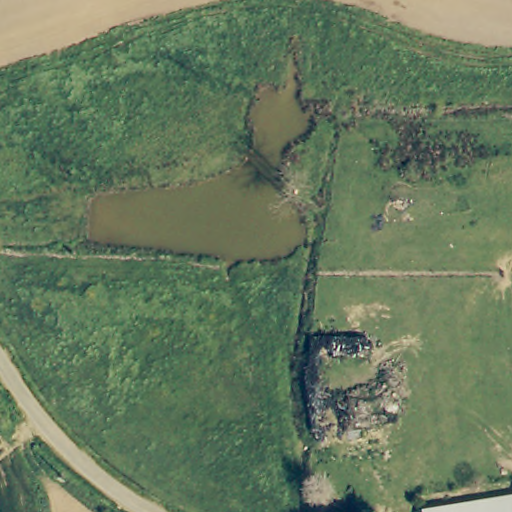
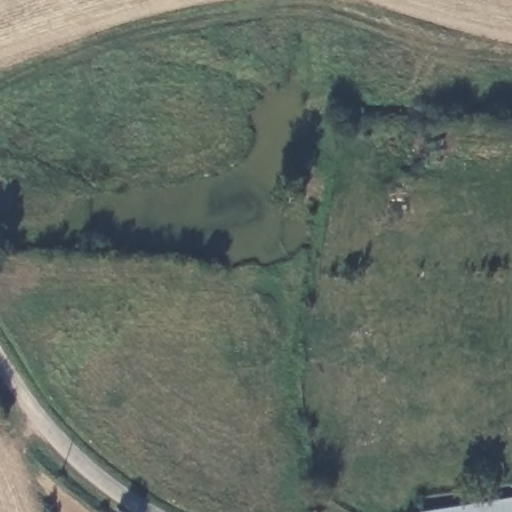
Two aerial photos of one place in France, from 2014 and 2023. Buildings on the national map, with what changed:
unchanged [(512,512),(436,512),(512,500),(512,512)]

